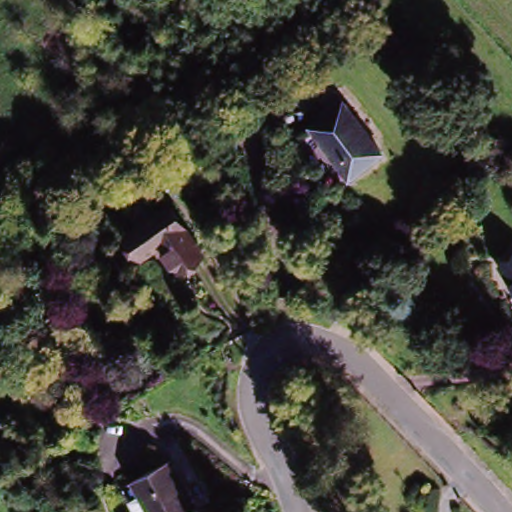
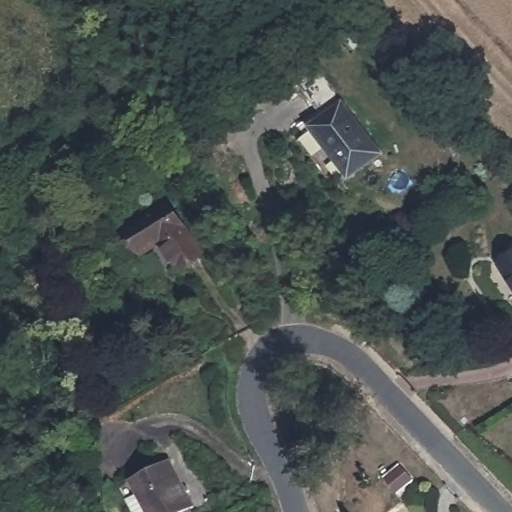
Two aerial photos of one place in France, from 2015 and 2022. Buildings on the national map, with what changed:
unchanged [(340,105),(379,155),(345,180),(307,131),(340,105)]
unchanged [(125,235),(167,205),(202,252),(177,270),(156,242),(140,254),(125,235)]
unchanged [(512,258),(512,289),(498,269),(512,258)]
unchanged [(131,506),(140,499),(130,480),(166,458),(193,505),(182,512),(134,512),(131,506)]

